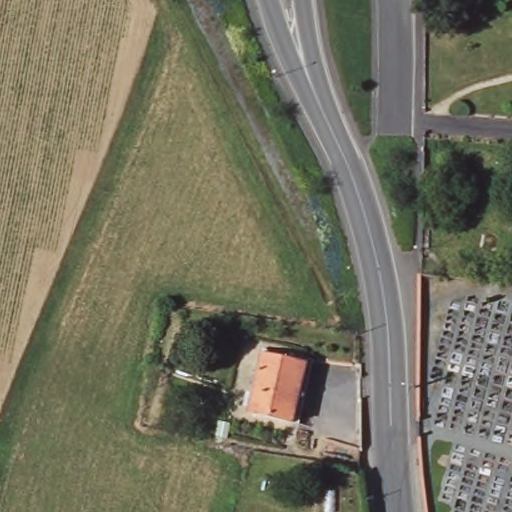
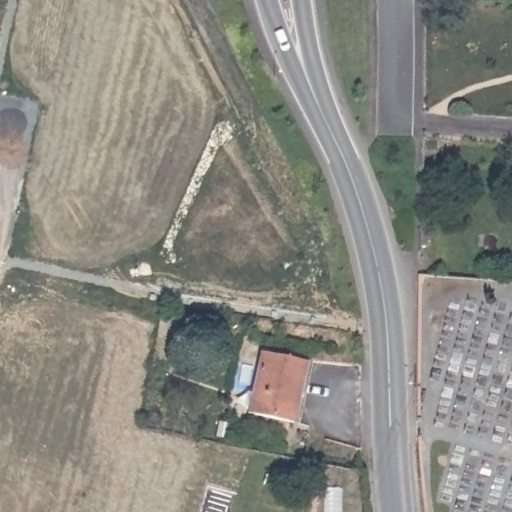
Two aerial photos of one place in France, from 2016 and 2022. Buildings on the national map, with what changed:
unchanged [(262,350),(307,361),(292,421),(247,410),(262,350)]

